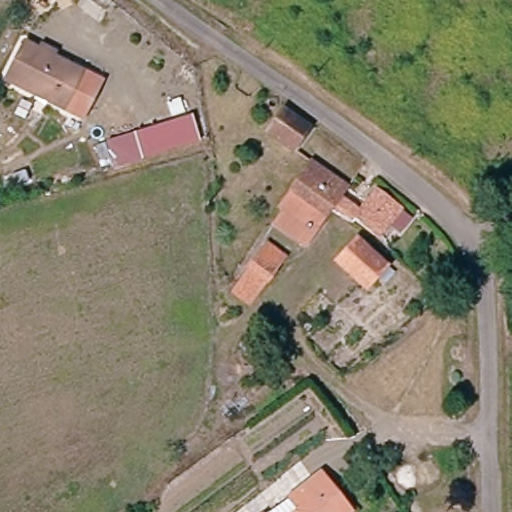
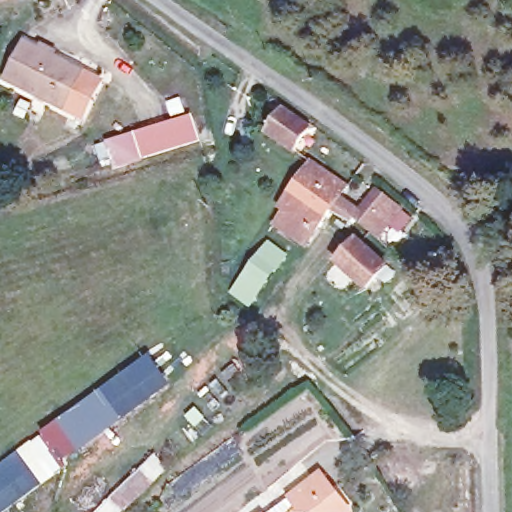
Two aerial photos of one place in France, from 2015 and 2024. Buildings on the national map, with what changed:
unchanged [(80,120),(62,110),(2,75),(27,34),(87,69),(104,80),(80,120)]
unchanged [(310,115),(295,134),(273,117),(288,98),(310,115)]
unchanged [(198,143),(140,162),(132,134),(189,115),(198,143)]
unchanged [(315,154),(352,184),(345,193),(336,206),(330,213),(294,185),(308,165),(315,154)]
unchanged [(330,213),(306,245),(275,221),(285,208),(280,204),(294,185),(330,213)]
unchanged [(397,209),(380,230),(360,211),(377,191),(397,209)]
unchanged [(388,278),(377,287),(372,279),(358,290),(334,254),(359,235),(388,278)]
unchanged [(285,260),(261,296),(238,281),(261,245),(285,260)]
new [(56,419),(147,353),(171,386),(79,453),(62,466),(64,470),(42,487),(15,450),(38,434),(56,419)]
new [(42,487),(7,512),(0,512),(0,462),(15,450),(42,487)]
new [(154,454),(167,470),(125,512),(123,512),(108,497),(154,454)]
unchanged [(349,503),(340,511),(341,512),(268,512),(327,468),(349,503)]
new [(108,497),(123,512),(92,512),(108,497)]

